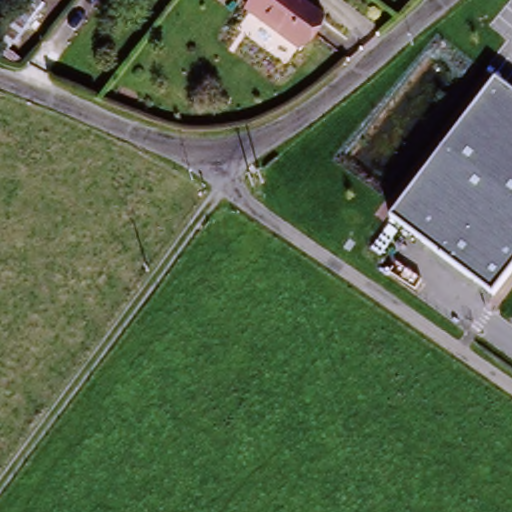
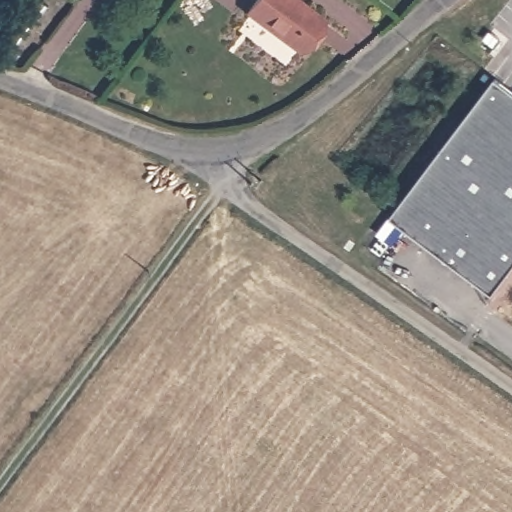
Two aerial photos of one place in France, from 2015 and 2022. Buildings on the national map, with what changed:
unchanged [(288,47),(247,16),(261,0),(288,0),(310,18),(322,26),(300,56),(288,47)]
unchanged [(512,269),(492,295),(390,218),(495,81),(512,94),(512,269)]

